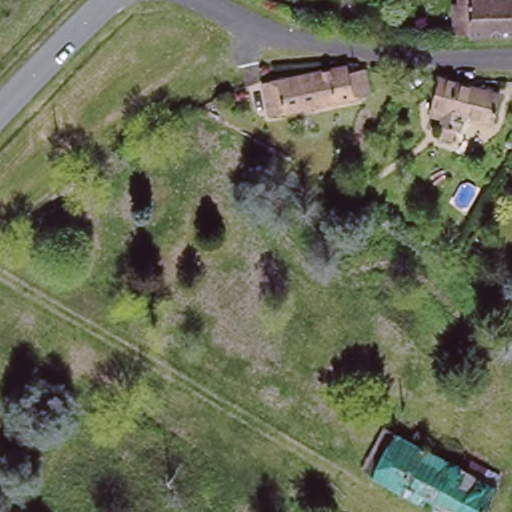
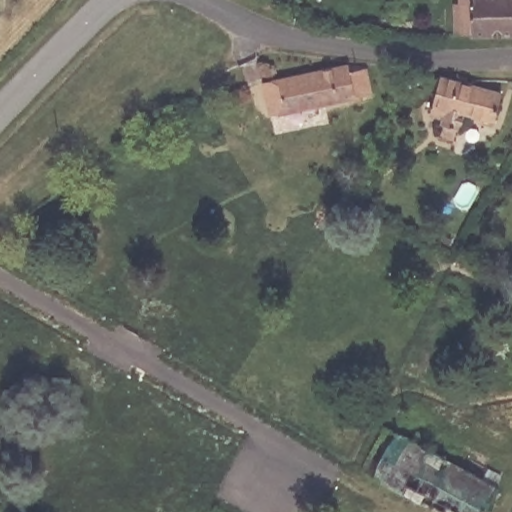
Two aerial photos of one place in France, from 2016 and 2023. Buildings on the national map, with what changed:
unchanged [(507,32),(470,35),(462,18),(452,17),(454,0),(512,0),(512,32),(507,32)]
unchanged [(358,92),(279,113),(270,75),(337,57),(340,66),(351,63),(358,92)]
unchanged [(459,124),(455,122),(447,139),(437,136),(442,118),(437,116),(440,109),(434,107),(437,89),(444,70),(503,88),(494,117),(465,107),(459,124)]
unchanged [(503,473),(498,482),(504,485),(490,512),(451,512),(372,469),(396,429),(479,472),(484,463),(503,473)]

